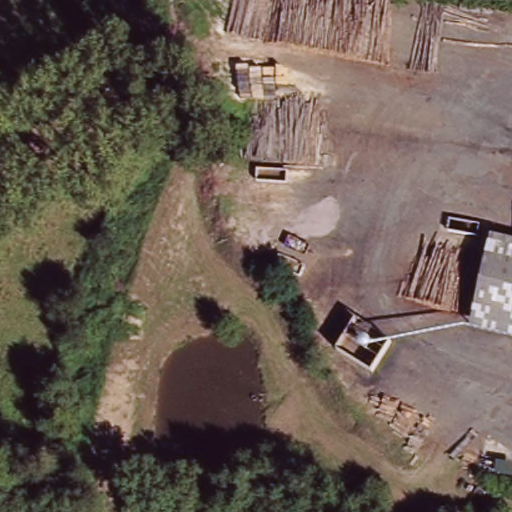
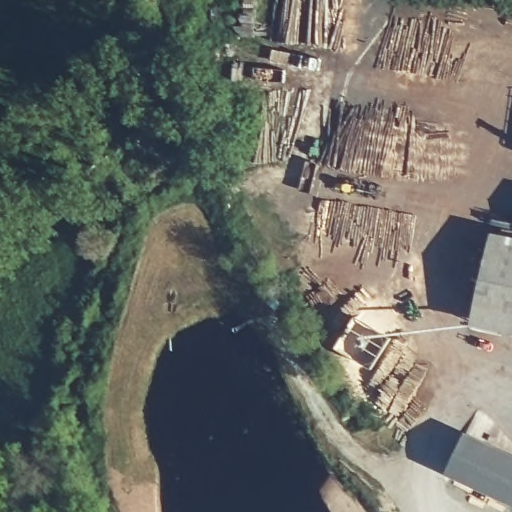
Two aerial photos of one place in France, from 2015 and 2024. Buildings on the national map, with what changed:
unchanged [(482,315),(486,293),(500,227),(512,230),(512,322),(482,315)]
new [(445,470),(467,431),(512,454),(512,504),(445,470)]

